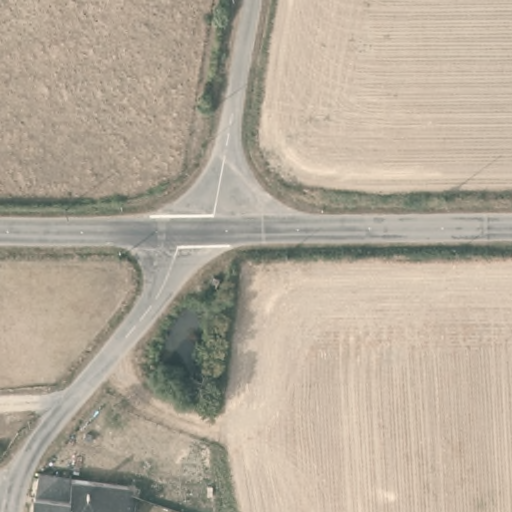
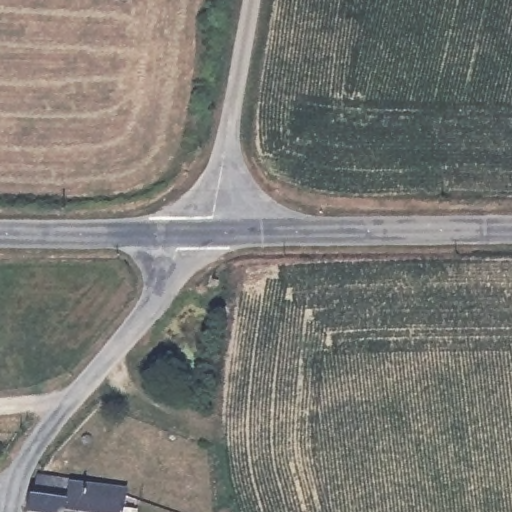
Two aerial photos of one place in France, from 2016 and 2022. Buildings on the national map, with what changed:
unchanged [(69,512),(39,512),(42,485),(46,484),(47,472),(75,477),(69,512)]
unchanged [(106,484),(103,503),(129,508),(129,512),(69,512),(75,477),(106,484)]

